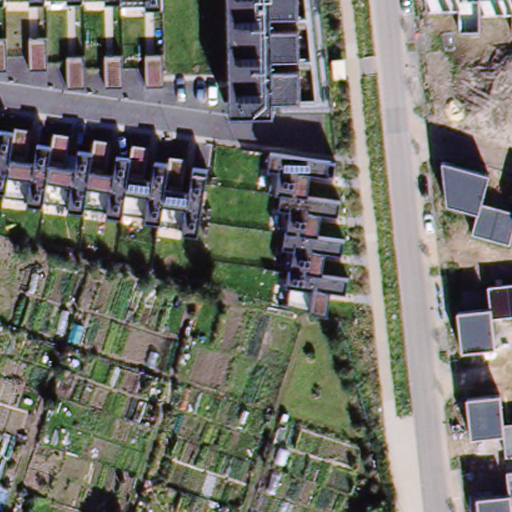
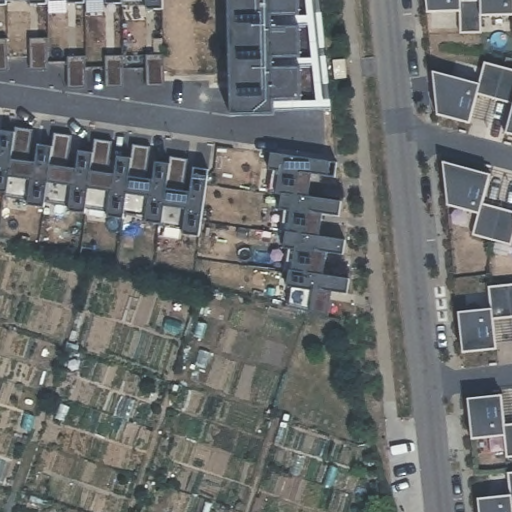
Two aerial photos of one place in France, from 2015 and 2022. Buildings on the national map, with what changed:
unchanged [(163,11),(145,11),(145,7),(122,8),(121,4),(0,6),(0,0),(162,0),(162,1),(163,11)]
unchanged [(273,116),(231,116),(227,0),(315,0),(332,111),(273,116)]
unchanged [(470,0),(512,0),(512,4),(512,13),(478,14),(479,31),(460,31),(458,10),(423,11),(422,0),(460,0),(460,1),(470,0)]
unchanged [(47,40),(47,71),(30,71),(29,41),(47,40)]
unchanged [(7,73),(0,73),(0,41),(6,41),(7,73)]
unchanged [(123,57),(123,89),(105,90),(105,57),(123,57)]
unchanged [(164,57),(164,89),(146,89),(145,57),(164,57)]
unchanged [(86,59),(86,91),(67,90),(67,58),(86,59)]
new [(512,71),(512,134),(506,133),(507,130),(491,126),(487,124),(493,101),(476,95),(468,121),(436,114),(432,72),(478,85),(484,65),(512,71)]
unchanged [(14,128),(32,131),(28,163),(35,164),(37,146),(52,148),(54,135),(71,137),(67,168),(76,169),(79,152),(91,154),(95,141),(114,144),(108,173),(114,174),(117,158),(130,160),(132,146),(151,149),(147,181),(153,181),(156,163),(169,165),(170,158),(188,160),(183,192),(188,193),(192,168),(210,171),(199,238),(183,235),(184,227),(84,212),(44,204),(43,208),(28,206),(30,197),(0,192),(0,132),(14,134),(14,128)]
unchanged [(336,163),(333,180),(310,177),(308,198),(341,202),(339,219),(321,217),(318,237),(346,240),(343,258),(326,256),(323,276),(347,280),(346,296),(330,293),(327,317),(310,312),(286,306),(288,288),(295,251),(284,249),(290,211),(280,210),(282,197),(276,196),(278,174),(268,172),(271,155),(336,163)]
unchanged [(488,176),(482,203),(512,212),(512,233),(510,244),(471,234),(476,214),(446,206),(442,162),(488,176)]
unchanged [(493,319),(495,349),(461,353),(457,313),(490,310),(488,288),(512,285),(512,317),(493,319)]
unchanged [(466,400),(500,396),(504,425),(512,424),(512,456),(505,458),(502,437),(471,439),(466,400)]
unchanged [(477,499),(507,495),(506,474),(512,473),(512,512),(478,512),(477,499)]

